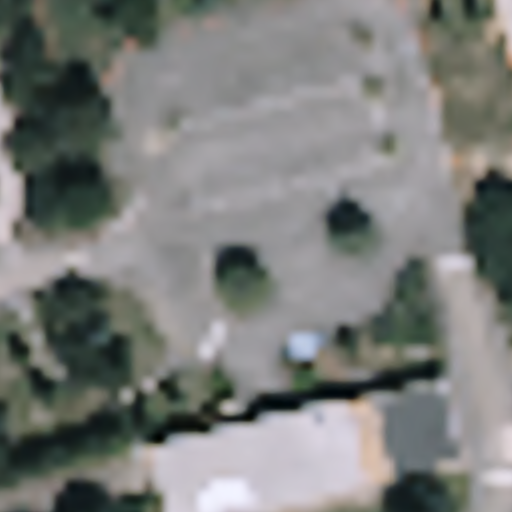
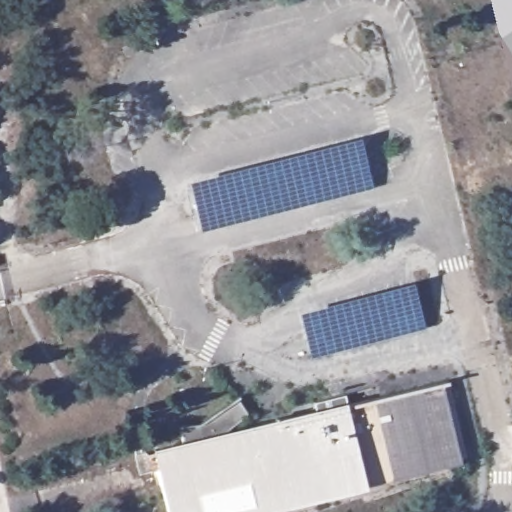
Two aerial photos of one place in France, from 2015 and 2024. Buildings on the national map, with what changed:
new [(365,129),(379,181),(209,224),(196,172),(365,129)]
new [(416,274),(428,322),(317,350),(305,302),(416,274)]
unchanged [(441,383),(462,468),(282,512),(161,512),(148,453),(441,383)]

